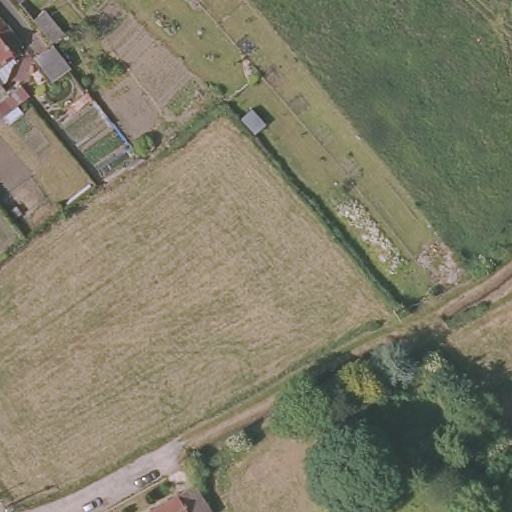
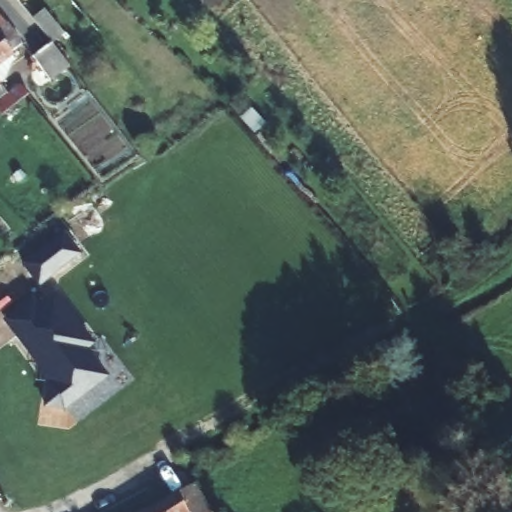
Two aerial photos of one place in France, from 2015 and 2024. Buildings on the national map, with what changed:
unchanged [(22,0),(25,0),(23,1),(22,0)]
unchanged [(18,30),(0,44),(0,9),(18,30)]
unchanged [(60,69),(53,60),(42,68),(35,58),(40,55),(27,39),(42,27),(70,60),(60,69)]
unchanged [(4,61),(0,65),(0,56),(4,61)]
unchanged [(0,100),(0,85),(21,70),(29,80),(20,86),(0,100)]
new [(64,411),(56,400),(45,410),(47,378),(12,331),(8,321),(34,298),(38,304),(55,291),(95,343),(88,349),(110,376),(64,411)]
unchanged [(192,500),(200,512),(143,512),(184,486),(192,500)]

